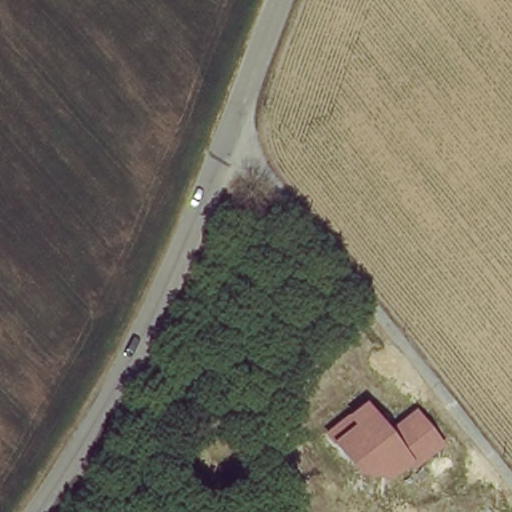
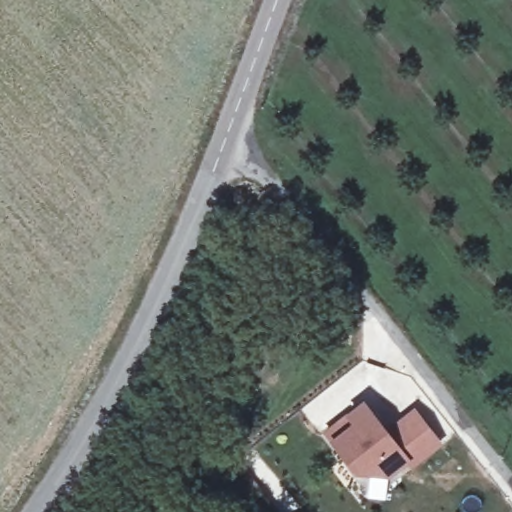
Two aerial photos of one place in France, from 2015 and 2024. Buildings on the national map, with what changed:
unchanged [(365,400),(390,429),(415,408),(445,447),(412,472),(406,467),(395,476),(355,472),(321,432),(365,400)]

